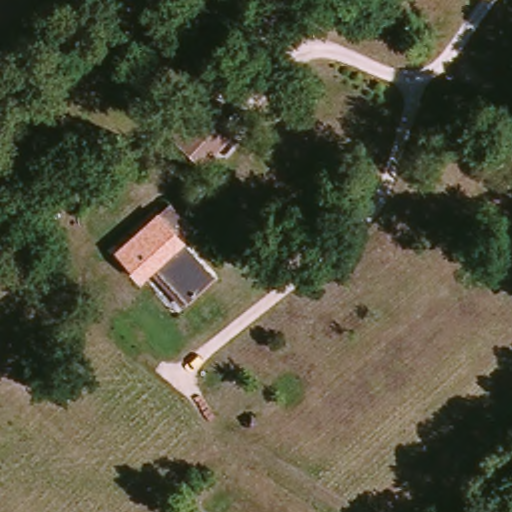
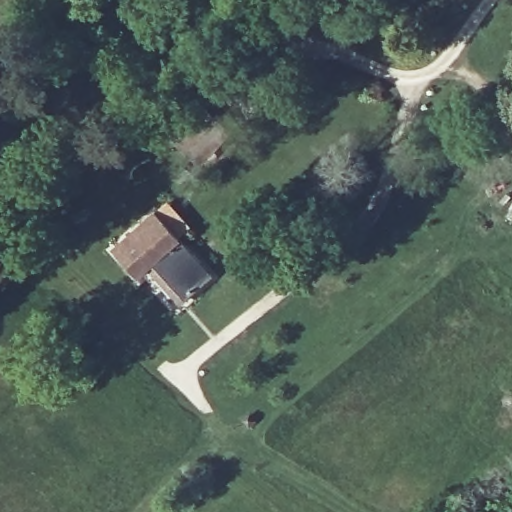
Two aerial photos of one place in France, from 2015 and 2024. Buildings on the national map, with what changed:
unchanged [(202,106),(226,131),(195,160),(172,134),(202,106)]
unchanged [(216,275),(191,296),(160,263),(141,280),(115,250),(156,213),(216,275)]

